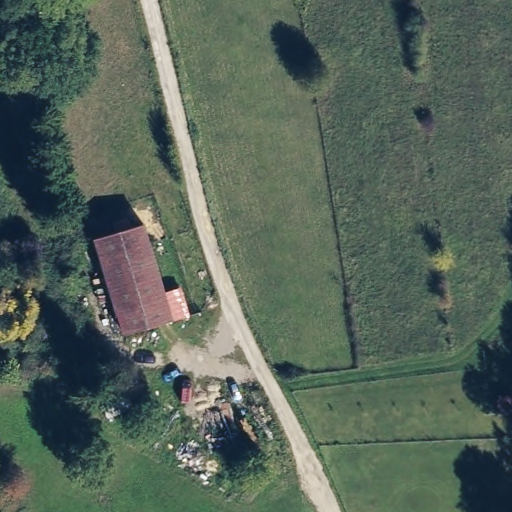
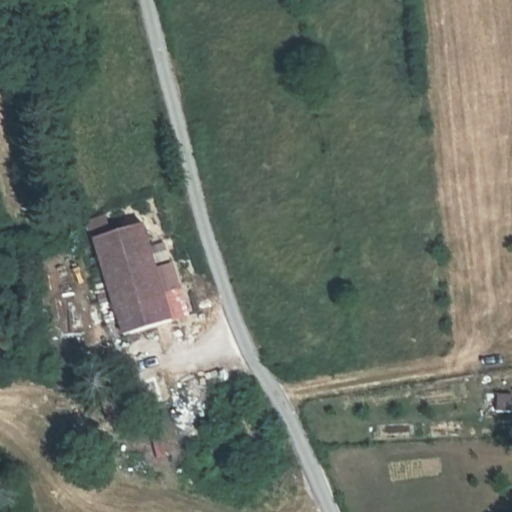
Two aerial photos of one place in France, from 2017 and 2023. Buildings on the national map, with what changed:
unchanged [(138,229),(168,326),(120,340),(90,244),(138,229)]

